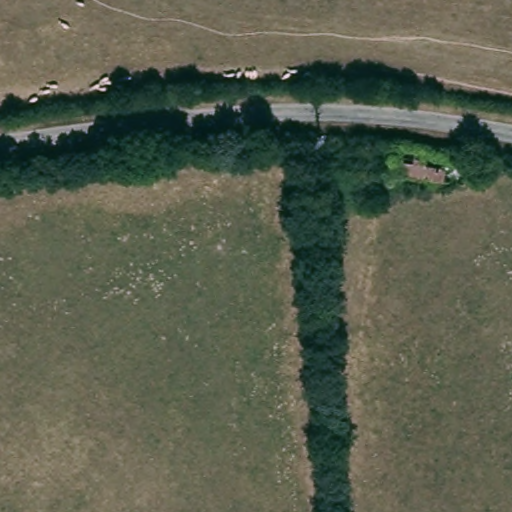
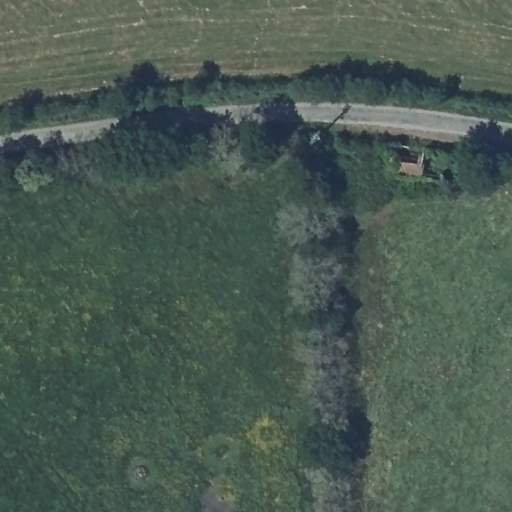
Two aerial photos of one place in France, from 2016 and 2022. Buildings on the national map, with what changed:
unchanged [(464,150),(463,172),(454,172),(453,181),(374,174),(376,141),(452,149),(464,150)]

